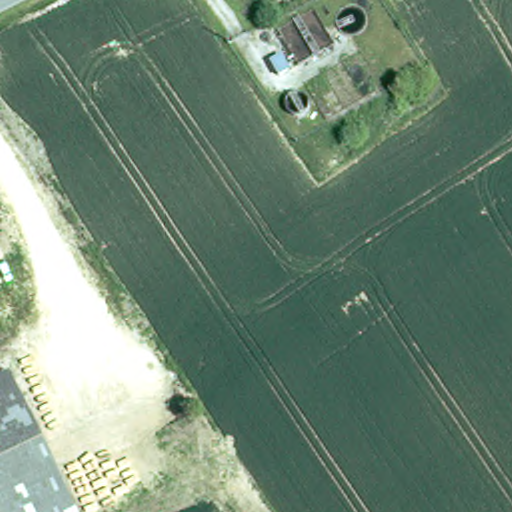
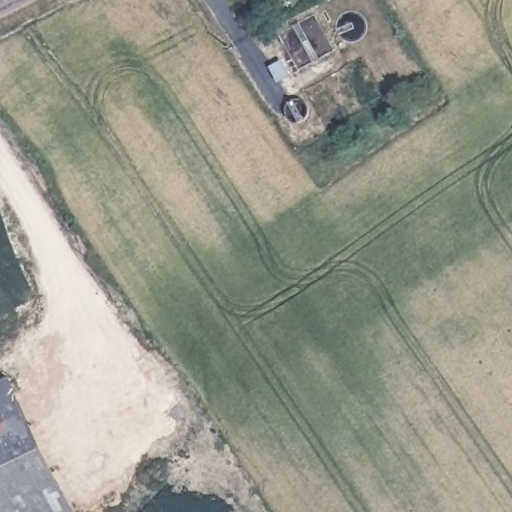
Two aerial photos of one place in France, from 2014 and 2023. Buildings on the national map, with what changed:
unchanged [(262,44),(262,41),(264,39),(267,38),(270,39),(272,41),(272,44),(270,46),(267,47),(265,46),(262,44)]
unchanged [(280,81),(270,65),(284,56),(294,73),(280,81)]
unchanged [(77,512),(0,512),(0,383),(13,377),(77,512)]

